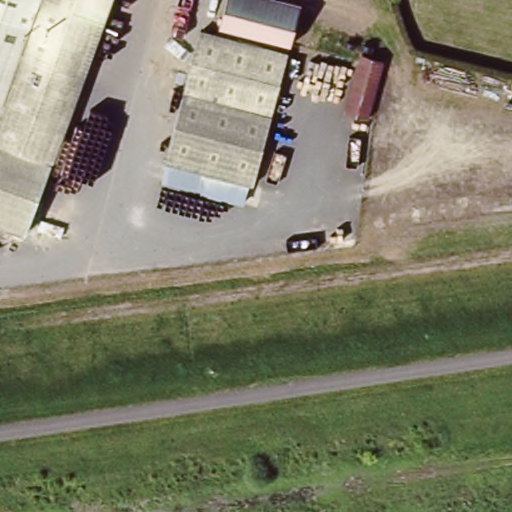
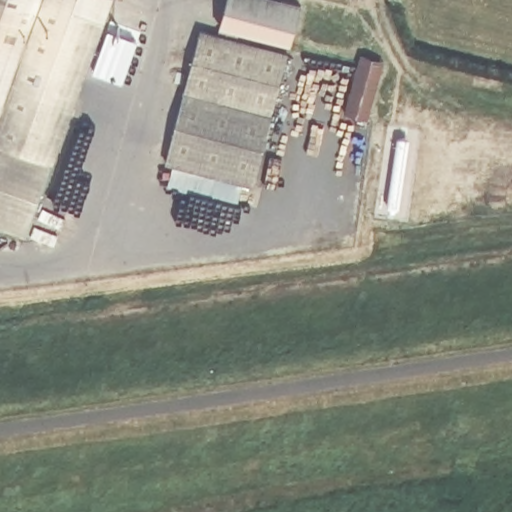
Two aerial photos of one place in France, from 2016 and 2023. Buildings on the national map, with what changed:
unchanged [(27,234),(0,224),(0,0),(110,0),(27,234)]
unchanged [(290,43),(219,26),(225,0),(273,0),(298,6),(290,43)]
unchanged [(286,55),(251,184),(165,161),(200,32),(286,55)]
unchanged [(340,111),(352,66),(356,54),(381,61),(378,73),(365,118),(340,111)]

